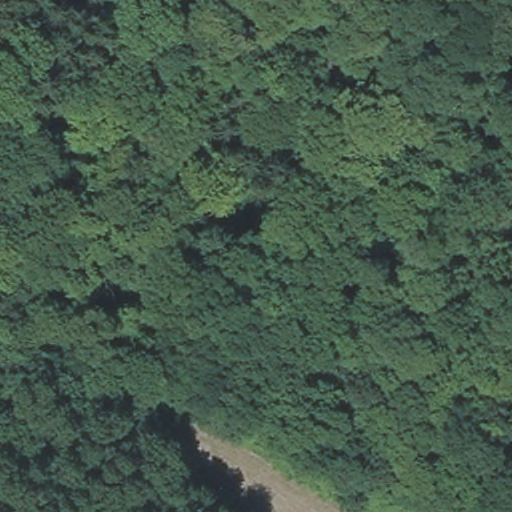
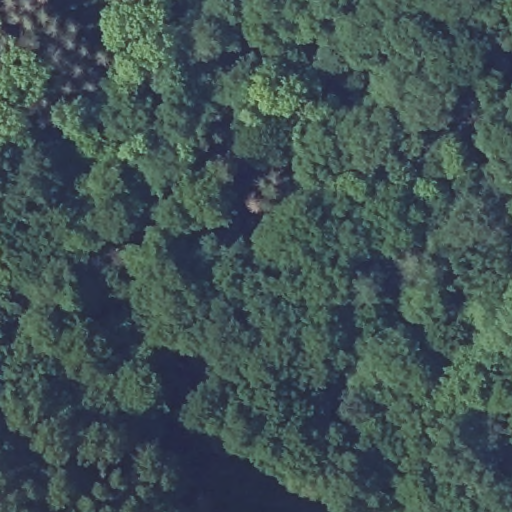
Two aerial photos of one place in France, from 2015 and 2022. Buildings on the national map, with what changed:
unchanged [(209,40),(198,69),(144,33),(155,0),(157,0),(209,40)]
unchanged [(292,137),(275,172),(207,129),(227,95),(292,137)]

